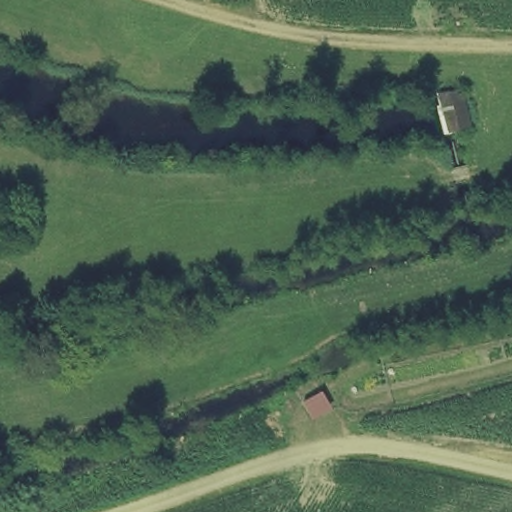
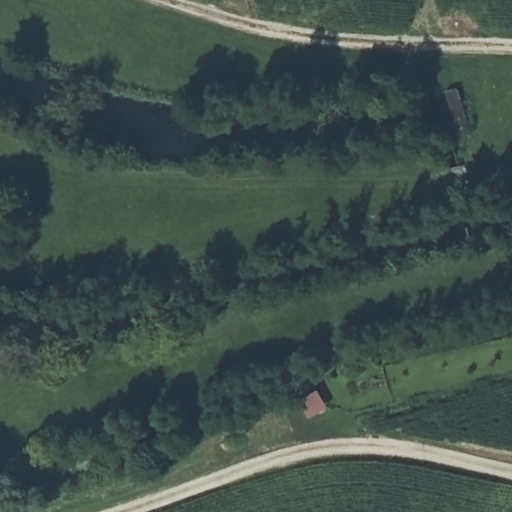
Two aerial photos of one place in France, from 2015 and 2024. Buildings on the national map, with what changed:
unchanged [(447,139),(432,97),(457,88),(470,130),(447,139)]

